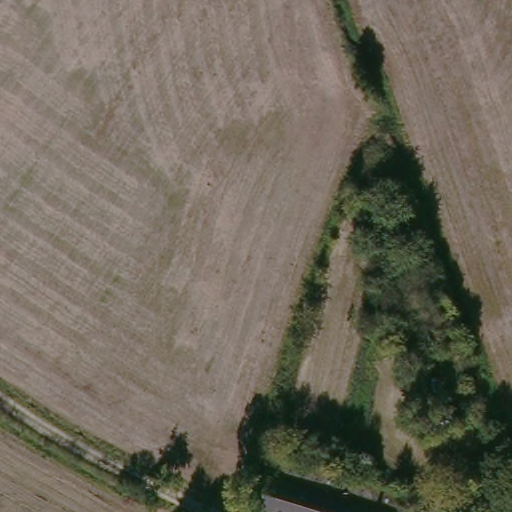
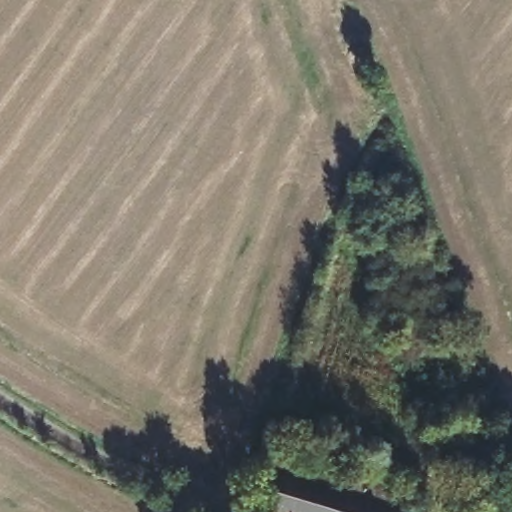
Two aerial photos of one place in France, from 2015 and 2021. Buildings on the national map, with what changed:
unchanged [(280,450),(424,493),(420,512),(281,512),(263,506),(280,450)]
unchanged [(501,474),(468,482),(463,461),(496,453),(501,474)]

